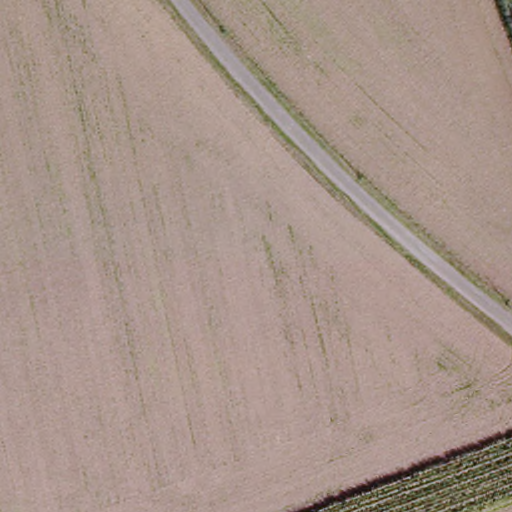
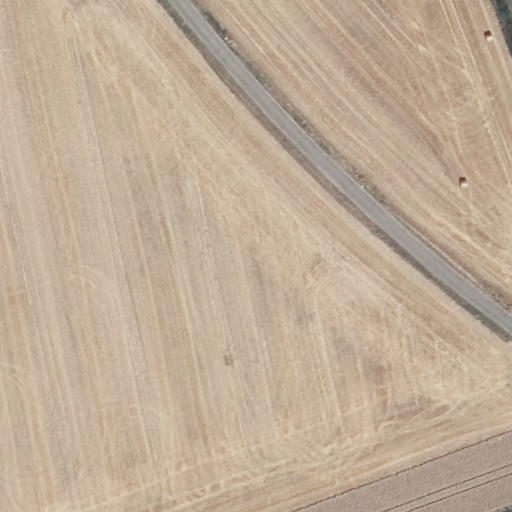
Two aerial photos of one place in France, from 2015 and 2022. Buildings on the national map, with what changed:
[]

